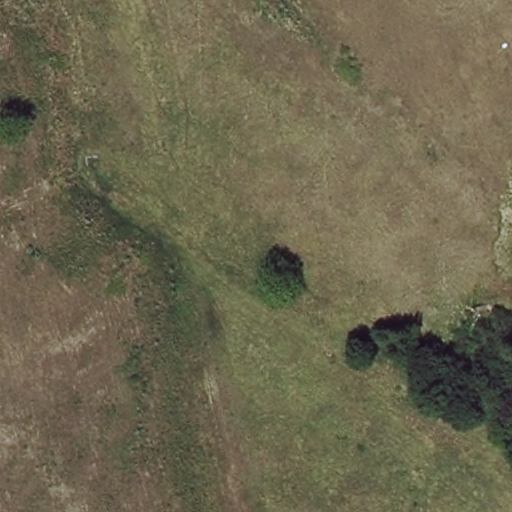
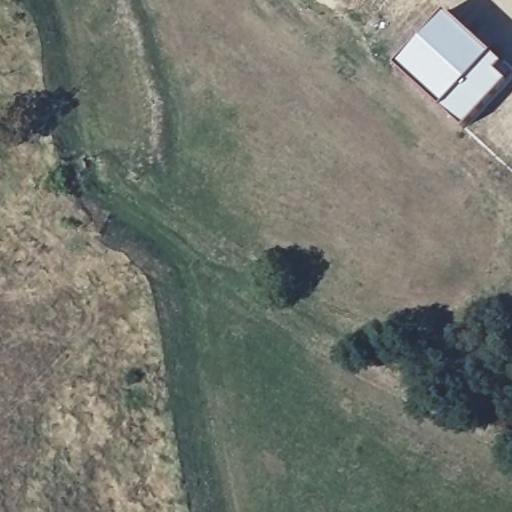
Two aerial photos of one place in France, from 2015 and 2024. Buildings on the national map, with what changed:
new [(444,110),(398,68),(449,14),(493,55),(504,64),(498,71),(509,81),(465,129),(444,110)]

